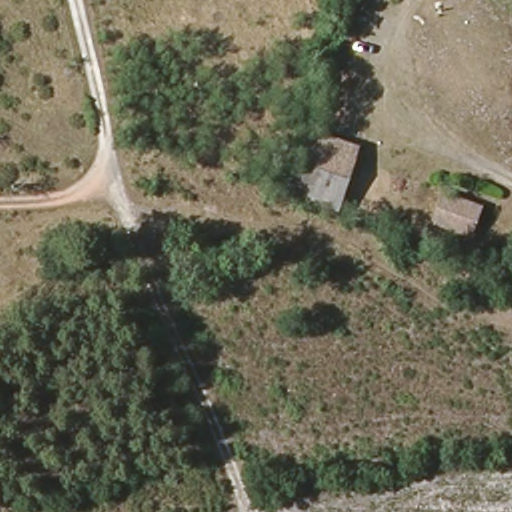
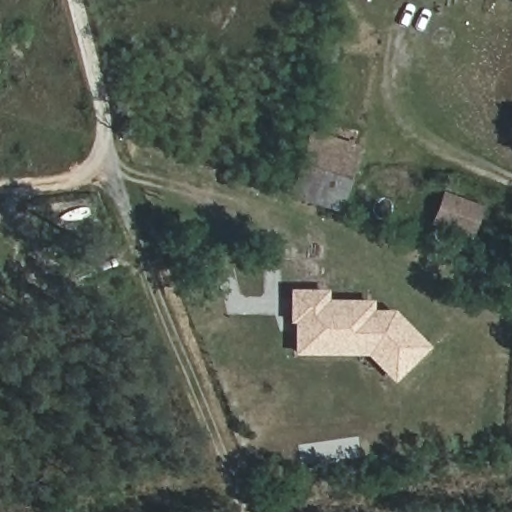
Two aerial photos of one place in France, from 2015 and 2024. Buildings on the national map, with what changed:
unchanged [(355,146),(335,211),(288,198),(314,131),(355,146)]
unchanged [(70,176),(45,172),(40,160),(75,156),(70,176)]
unchanged [(478,205),(461,249),(420,228),(441,190),(478,205)]
new [(293,351),(293,330),(292,319),(287,319),(288,292),(320,291),(321,302),(366,302),(366,312),(388,312),(421,346),(390,377),(364,351),(325,351),(293,351)]

